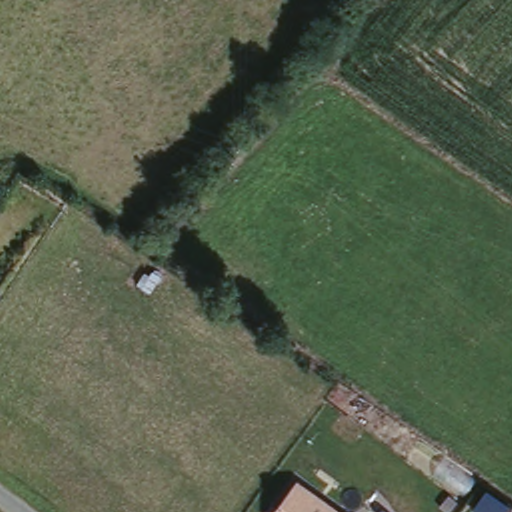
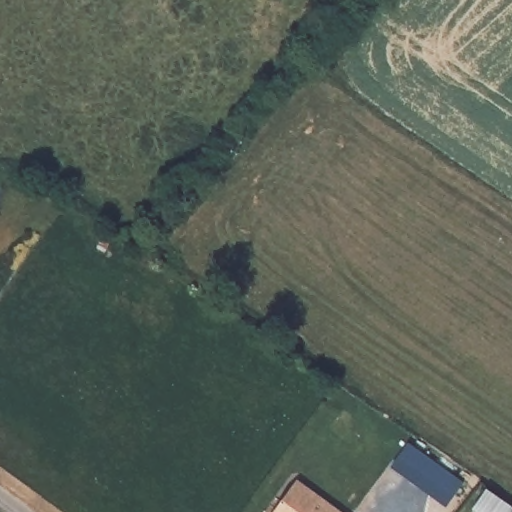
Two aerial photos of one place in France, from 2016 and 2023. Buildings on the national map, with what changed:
unchanged [(1,190),(0,192),(0,189),(1,190)]
new [(447,508),(392,468),(410,443),(464,483),(447,508)]
unchanged [(278,512),(302,478),(350,512),(278,512)]

